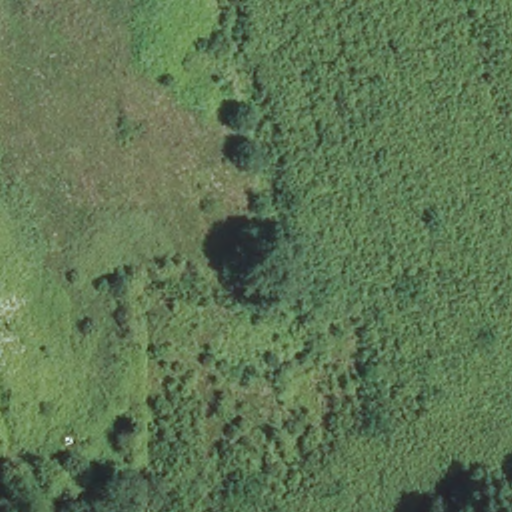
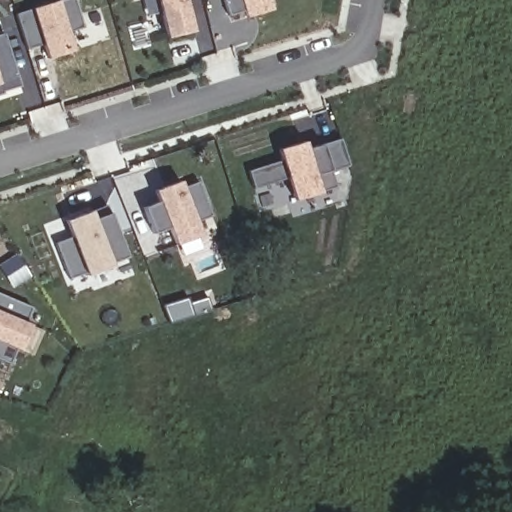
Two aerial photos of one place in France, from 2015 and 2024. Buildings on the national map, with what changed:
new [(31,8),(56,0),(58,0),(59,1),(62,0),(74,0),(83,27),(69,31),(75,51),(47,60),(43,44),(26,50),(16,14),(31,8)]
new [(157,0),(186,0),(195,32),(167,38),(157,0)]
new [(274,10),(247,19),(244,11),(228,15),(223,0),(270,0),(274,10)]
new [(20,87),(1,91),(2,94),(0,95),(0,35),(4,34),(20,87)]
new [(282,159),(278,150),(305,141),(308,149),(322,145),(340,139),(348,166),(331,171),(326,172),(335,187),(321,190),(321,193),(294,201),(287,178),(253,189),(248,171),(282,159)]
new [(158,202),(154,191),(180,180),(184,189),(199,183),(212,216),(197,222),(202,236),(175,246),(168,227),(153,233),(143,208),(158,202)]
new [(71,236),(65,221),(92,210),(93,212),(106,206),(109,214),(125,257),(112,262),(114,266),(86,277),(85,273),(69,279),(56,244),(71,236)]
new [(31,276),(11,288),(0,270),(0,265),(17,254),(31,276)]
new [(21,321),(31,325),(20,351),(11,347),(8,363),(0,360),(0,294),(30,307),(21,321)]
demolished [(81,468),(68,512),(45,512),(33,509),(48,459),(81,468)]

